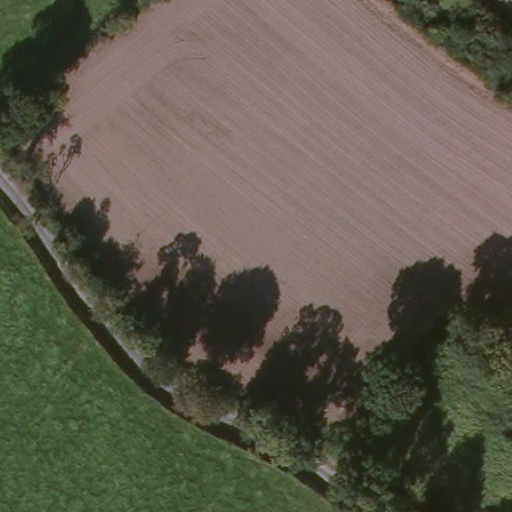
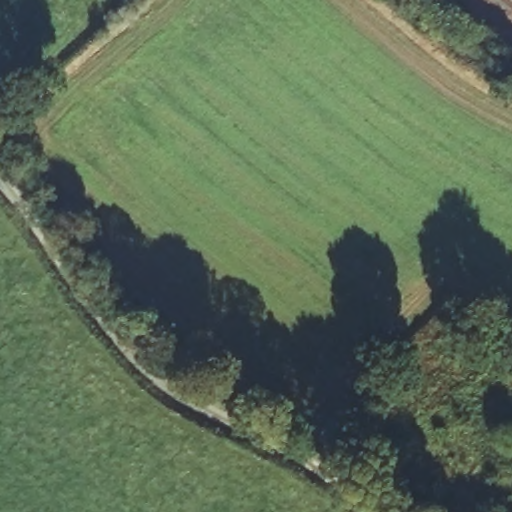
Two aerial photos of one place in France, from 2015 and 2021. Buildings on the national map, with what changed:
[]

